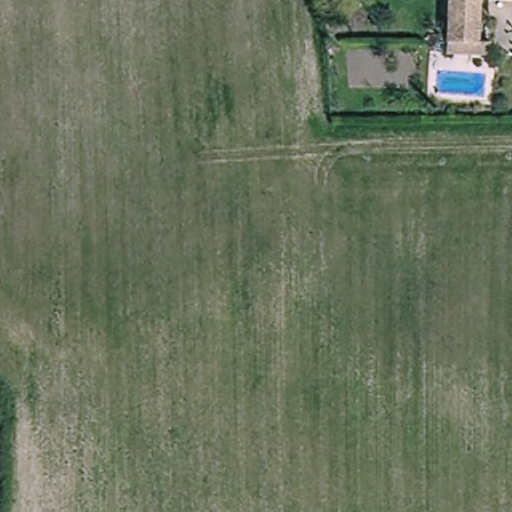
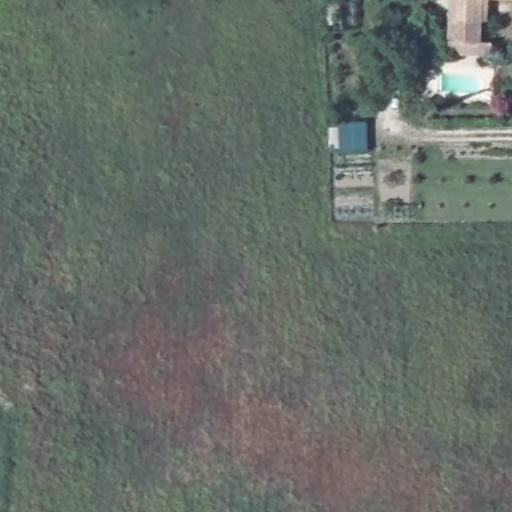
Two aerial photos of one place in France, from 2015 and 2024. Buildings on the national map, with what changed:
unchanged [(493,52),(450,49),(450,46),(451,37),(453,0),(483,0),(481,38),(494,39),(493,52)]

